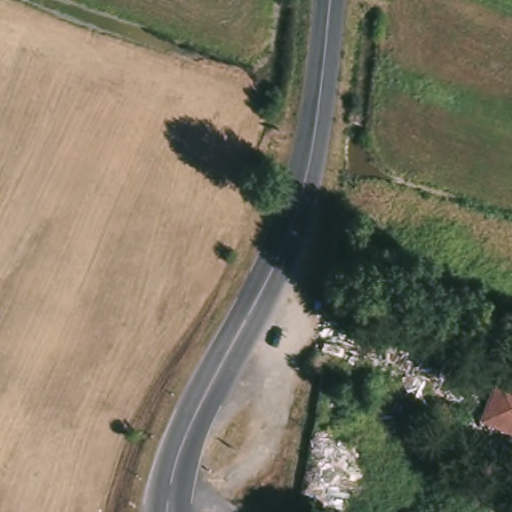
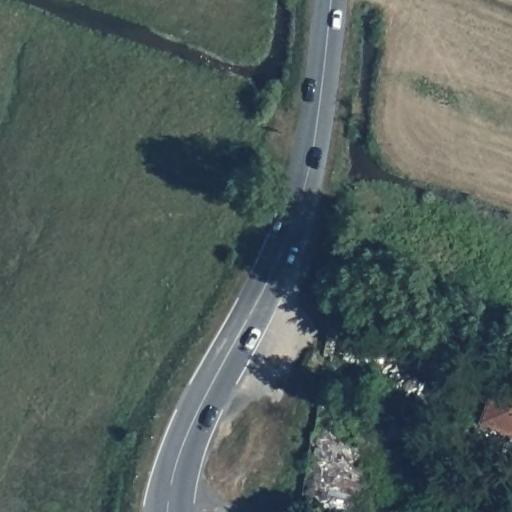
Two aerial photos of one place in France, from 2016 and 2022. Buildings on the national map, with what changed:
unchanged [(512,386),(512,432),(483,422),(499,382),(512,386)]

